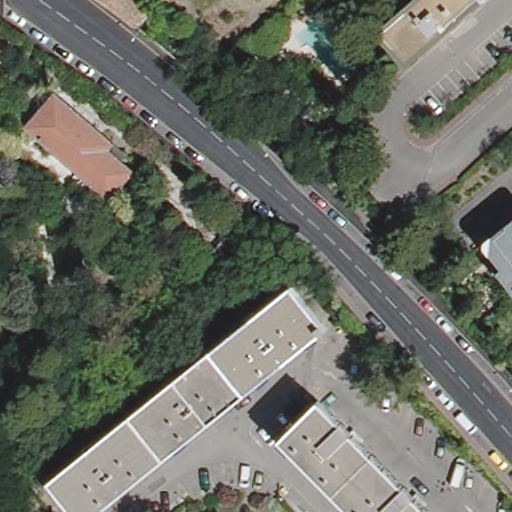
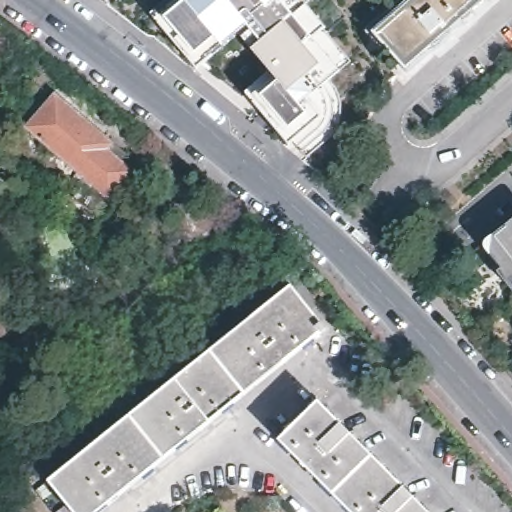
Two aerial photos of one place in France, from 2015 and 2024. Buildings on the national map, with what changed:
demolished [(108,0),(137,0),(150,16),(141,25),(121,9),(108,0)]
new [(301,0),(324,28),(350,61),(339,70),(306,98),(320,116),(291,144),(248,93),(274,76),(253,49),(262,41),(247,25),(225,44),(196,67),(152,13),(170,0),(301,0)]
unchanged [(455,25),(439,41),(435,39),(413,57),(387,27),(418,0),(480,0),(454,23),(455,25)]
demolished [(291,31),(267,52),(253,49),(246,40),(278,14),(291,31)]
unchanged [(120,144),(116,149),(141,170),(118,197),(35,126),(63,95),(120,144)]
unchanged [(490,270),(495,265),(483,250),(475,240),(485,232),(510,211),(512,209),(512,292),(510,293),(490,270)]
unchanged [(225,232),(250,254),(221,288),(197,268),(225,232)]
unchanged [(246,396),(103,512),(78,512),(52,478),(281,295),(295,283),(331,328),(246,396)]
unchanged [(355,508),(283,435),(323,396),(437,512),(359,512),(355,508)]

